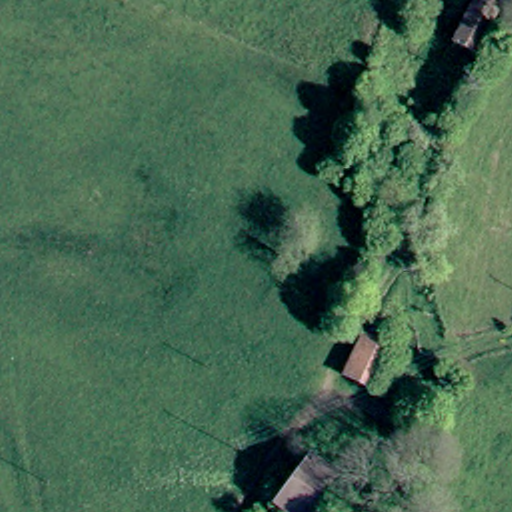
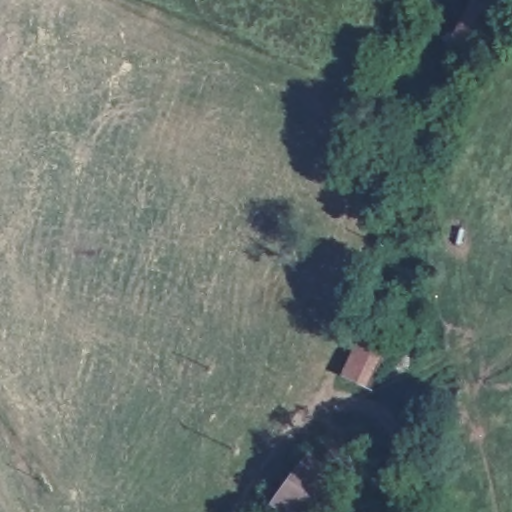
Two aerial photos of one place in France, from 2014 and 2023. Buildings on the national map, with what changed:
unchanged [(457,56),(479,12),(472,9),(478,0),(512,0),(512,4),(491,50),(482,68),(457,56)]
unchanged [(366,107),(406,126),(373,193),(334,172),(366,107)]
unchanged [(395,345),(376,388),(346,380),(365,336),(395,345)]
unchanged [(307,454),(336,478),(311,512),(276,512),(269,506),(307,454)]

